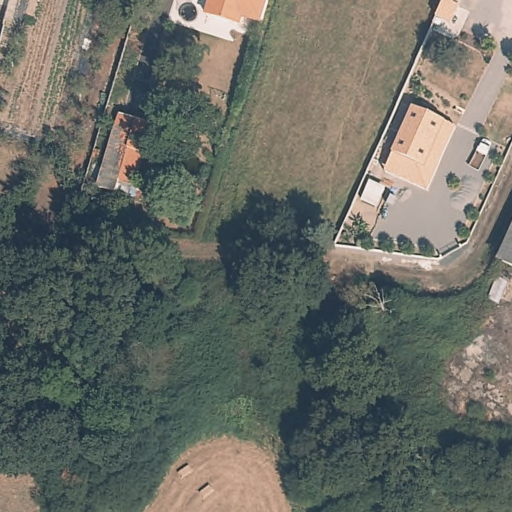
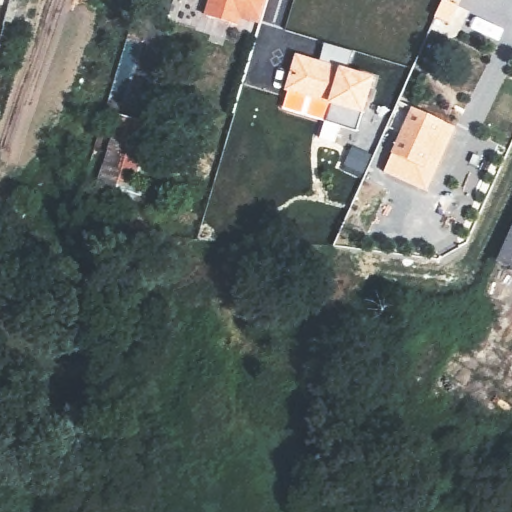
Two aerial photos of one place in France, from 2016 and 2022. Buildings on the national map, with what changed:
unchanged [(240,9),(211,0),(243,0),(240,9)]
unchanged [(266,6),(245,0),(268,0),(266,6)]
unchanged [(448,0),(457,0),(463,3),(454,21),(441,15),(448,0)]
new [(374,79),(358,132),(325,122),(282,110),(287,89),(296,56),(374,79)]
unchanged [(96,175),(120,103),(136,108),(150,113),(132,170),(118,165),(113,179),(96,175)]
unchanged [(446,122),(426,173),(393,157),(413,106),(446,122)]
unchanged [(184,216),(194,185),(208,190),(198,221),(184,216)]
unchanged [(512,224),(512,272),(495,264),(512,224)]

